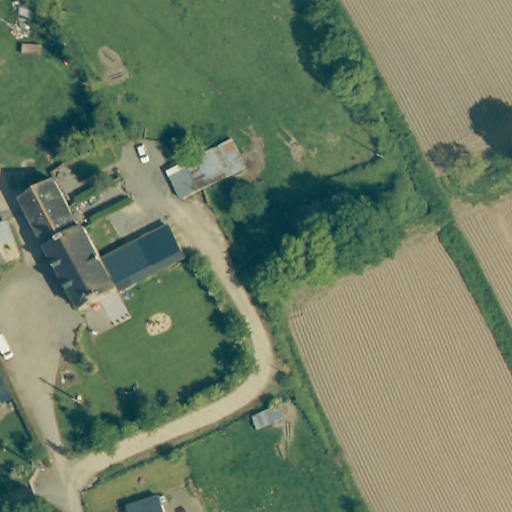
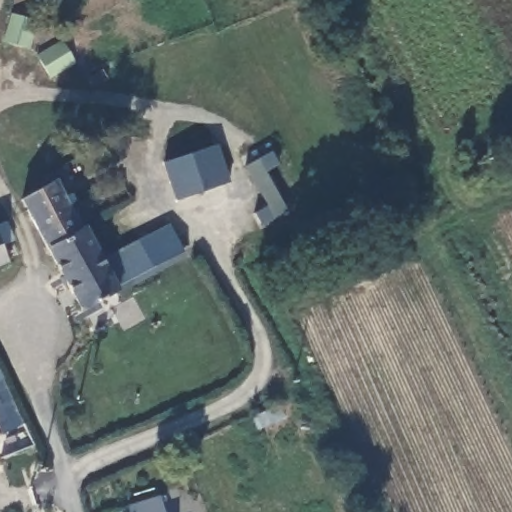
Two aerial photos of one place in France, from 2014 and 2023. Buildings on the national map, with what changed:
new [(168,172),(215,151),(227,176),(180,197),(168,172)]
new [(265,171),(287,213),(260,226),(255,212),(268,206),(245,166),(271,152),(278,163),(265,171)]
unchanged [(54,184),(81,233),(84,232),(104,267),(141,245),(158,274),(84,314),(20,204),(54,184)]
unchanged [(13,249),(1,254),(8,267),(0,270),(0,229),(4,227),(13,249)]
unchanged [(141,245),(171,230),(187,258),(158,274),(141,245)]
unchanged [(0,410),(1,413),(0,414),(0,410)]
unchanged [(164,512),(138,512),(135,499),(158,492),(164,512)]
unchanged [(138,512),(130,512),(128,501),(135,499),(138,512)]

